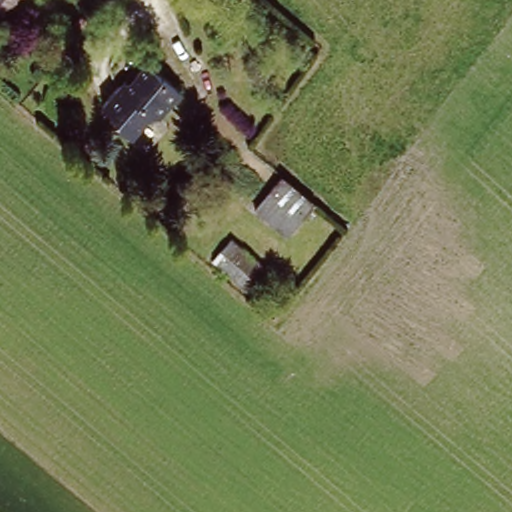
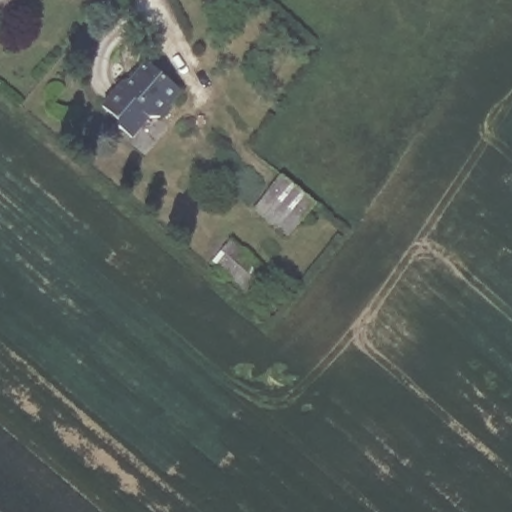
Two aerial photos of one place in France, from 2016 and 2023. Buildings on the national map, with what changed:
unchanged [(9,2),(6,0),(10,0),(9,2)]
unchanged [(174,100),(152,125),(140,127),(125,144),(114,133),(117,129),(99,113),(124,84),(127,87),(140,71),(174,100)]
unchanged [(315,204),(286,237),(254,209),(282,177),(315,204)]
unchanged [(249,292),(242,286),(213,261),(230,241),(259,267),(265,272),(249,292)]

